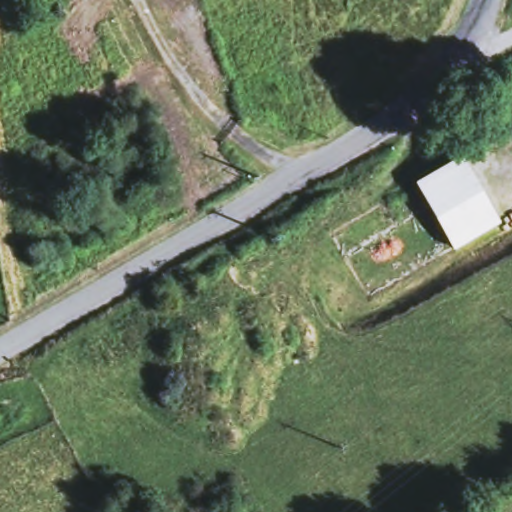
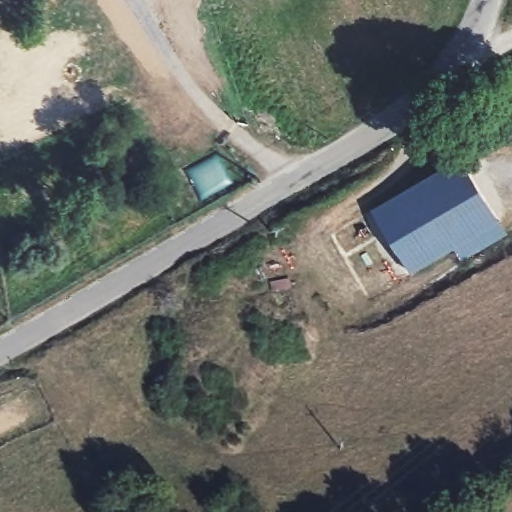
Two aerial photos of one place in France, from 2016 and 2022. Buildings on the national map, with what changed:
new [(460,157),(506,236),(461,260),(455,249),(411,272),(374,209),(460,157)]

